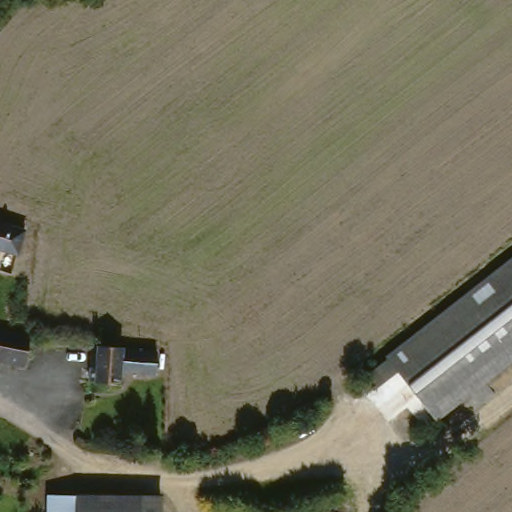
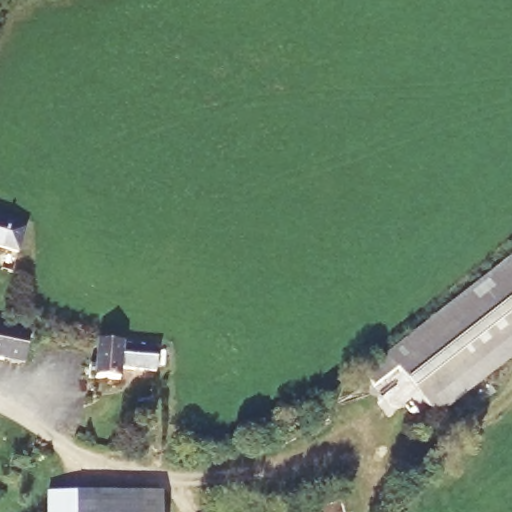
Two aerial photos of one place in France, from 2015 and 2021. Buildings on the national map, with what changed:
unchanged [(0,226),(13,230),(5,255),(0,253),(0,226)]
unchanged [(399,372),(385,383),(377,370),(512,264),(512,358),(435,419),(399,372)]
unchanged [(24,363),(0,358),(0,329),(30,335),(24,363)]
unchanged [(121,346),(157,350),(153,372),(117,367),(116,382),(92,378),(97,343),(121,346)]
unchanged [(76,495),(76,505),(162,506),(162,512),(47,512),(47,495),(76,495)]

